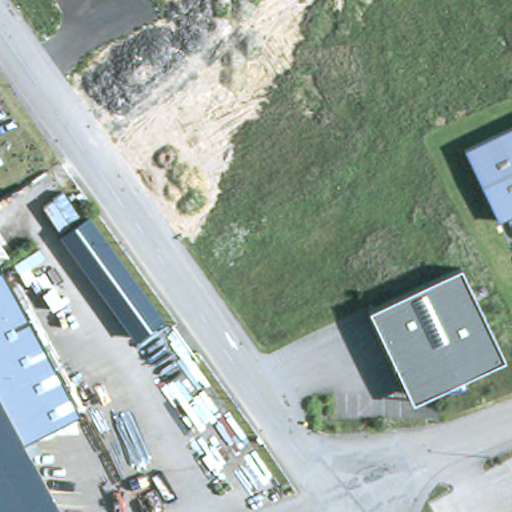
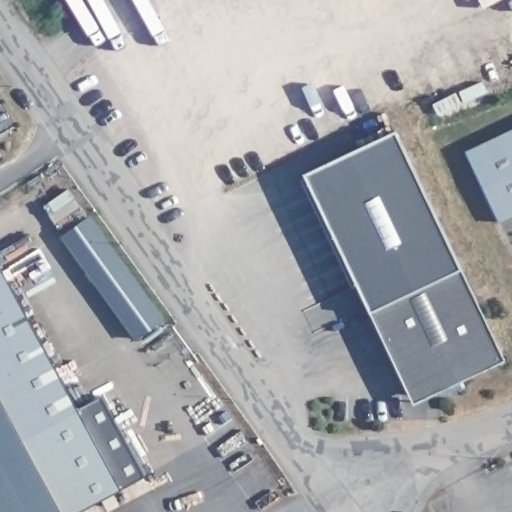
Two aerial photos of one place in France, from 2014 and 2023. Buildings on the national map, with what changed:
unchanged [(498,218),(465,147),(512,126),(512,212),(498,218)]
new [(370,310),(356,281),(350,286),(299,179),(306,173),(396,131),(461,268),(370,310)]
unchanged [(165,321),(137,343),(57,236),(90,213),(165,321)]
unchanged [(0,267),(1,267),(79,409),(17,439),(0,408),(0,267)]
unchanged [(367,312),(461,268),(504,362),(410,403),(367,312)]
new [(146,475),(119,488),(74,512),(57,512),(17,439),(79,409),(102,395),(146,475)]
unchanged [(0,512),(0,408),(57,512),(0,512)]

